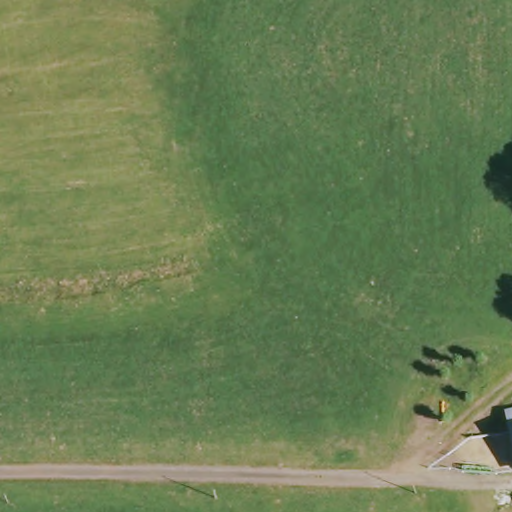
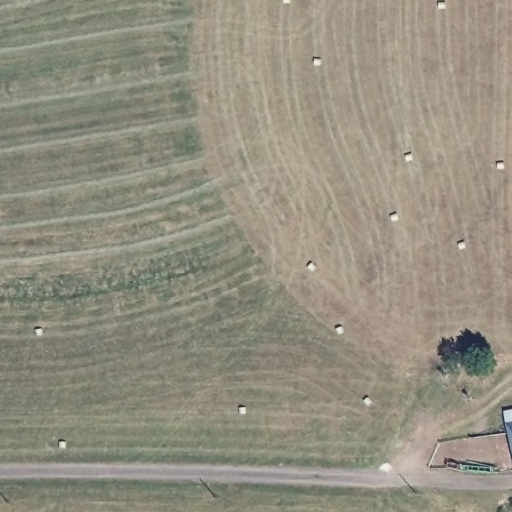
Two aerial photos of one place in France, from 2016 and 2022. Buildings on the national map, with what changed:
unchanged [(512,410),(512,417),(511,411),(512,410)]

